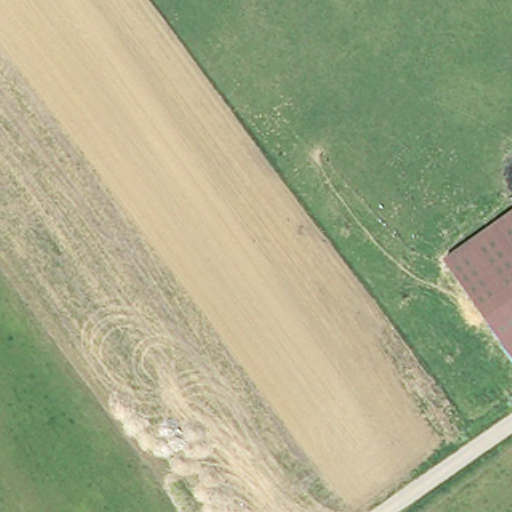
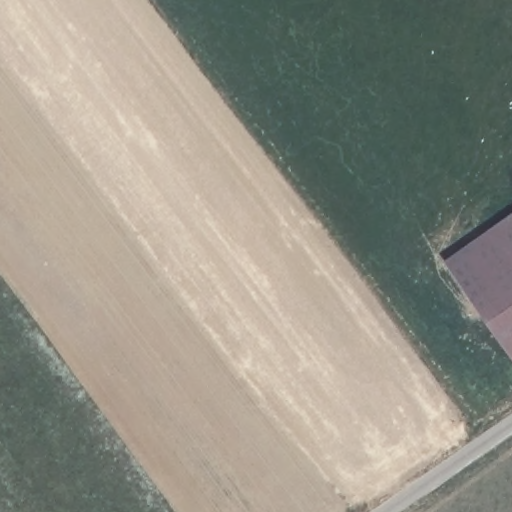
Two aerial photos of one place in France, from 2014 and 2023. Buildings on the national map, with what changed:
unchanged [(512,209),(512,358),(442,258),(512,209)]

